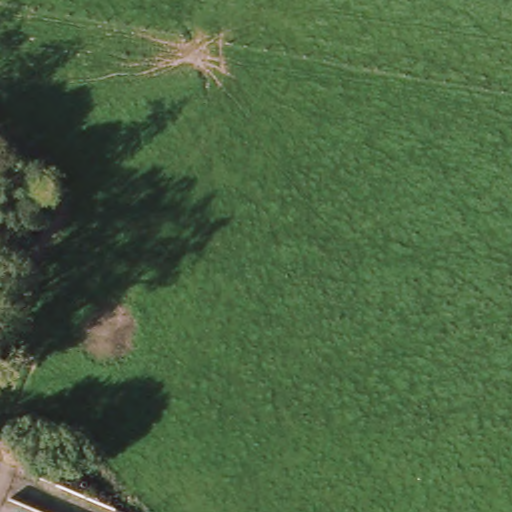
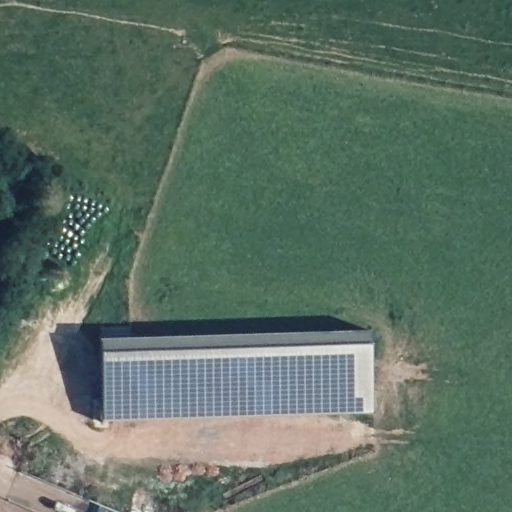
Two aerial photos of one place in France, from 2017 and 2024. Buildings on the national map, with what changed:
new [(372,422),(99,429),(97,346),(97,336),(128,335),(128,346),(370,340),(372,422)]

